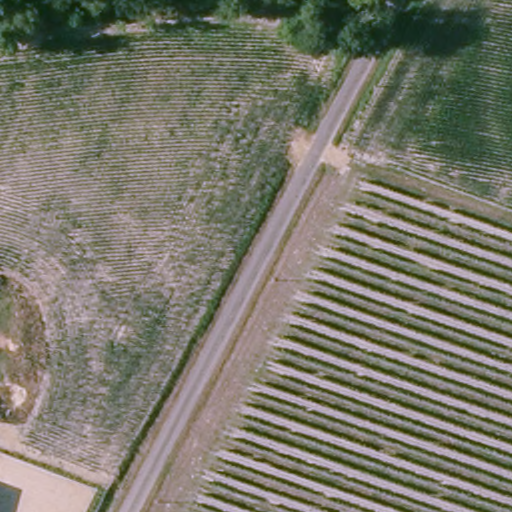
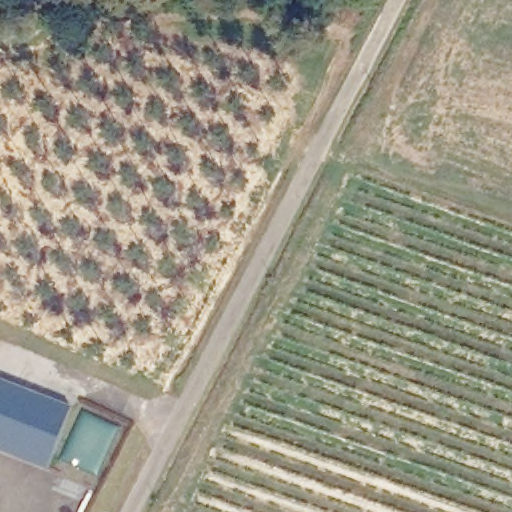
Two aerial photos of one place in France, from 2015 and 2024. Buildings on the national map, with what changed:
new [(72,408),(46,470),(0,451),(0,379),(72,408)]

